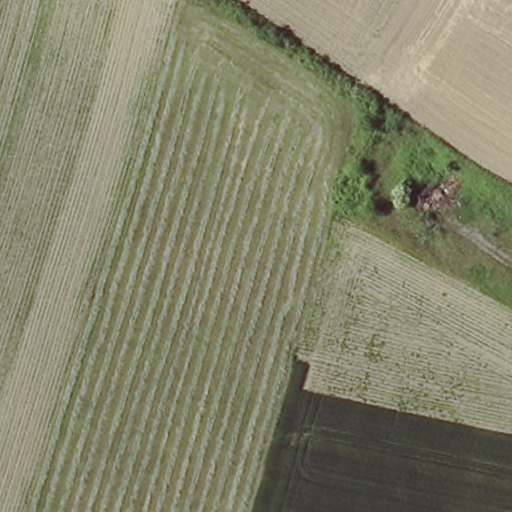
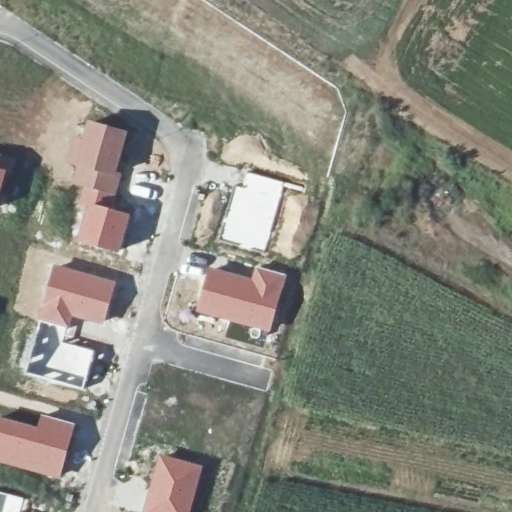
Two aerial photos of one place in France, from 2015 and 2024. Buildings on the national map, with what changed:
new [(71,133),(82,136),(87,119),(129,131),(118,172),(75,165),(63,162),(71,133)]
new [(0,197),(0,154),(15,158),(0,197)]
new [(75,165),(118,172),(123,174),(113,208),(86,204),(85,207),(76,205),(81,187),(69,183),(75,165)]
new [(236,183),(241,184),(245,171),(284,182),(264,252),(220,238),(236,183)]
new [(85,207),(86,204),(113,208),(131,214),(119,254),(75,241),(85,207)]
new [(53,263),(117,280),(103,326),(73,318),(69,328),(37,319),(53,263)]
new [(208,267),(251,277),(255,266),(287,275),(270,332),(195,312),(208,267)]
new [(37,319),(69,328),(65,341),(94,350),(83,390),(22,373),(37,319)]
new [(40,413),(75,423),(60,480),(0,463),(0,415),(36,426),(40,413)]
new [(158,453),(204,465),(190,512),(141,512),(158,453)]
new [(21,512),(0,512),(0,491),(25,498),(21,512)]

